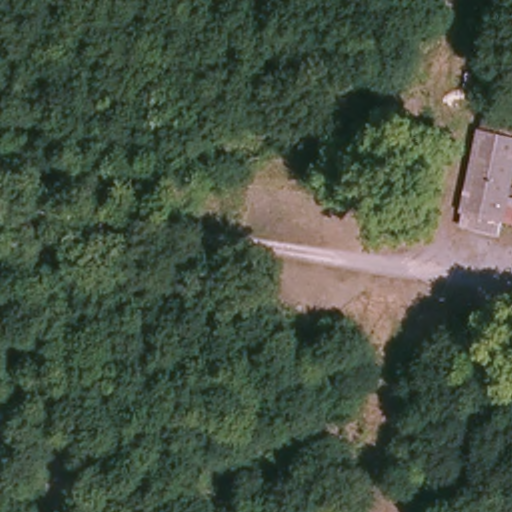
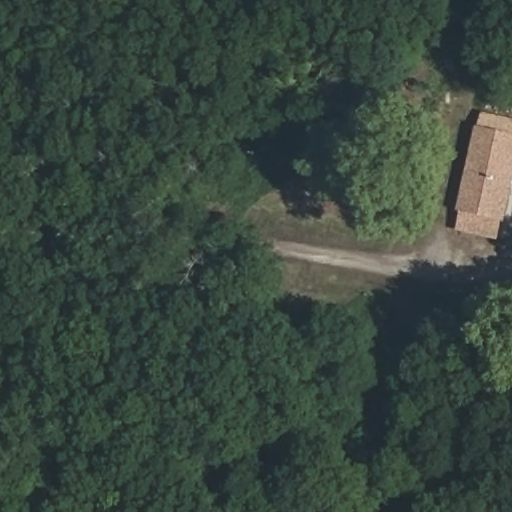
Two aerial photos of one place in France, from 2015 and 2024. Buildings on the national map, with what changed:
unchanged [(512,193),(506,222),(464,216),(482,134),(512,140),(512,193)]

